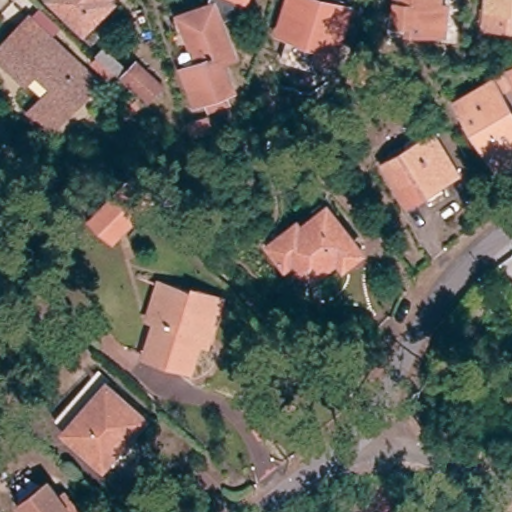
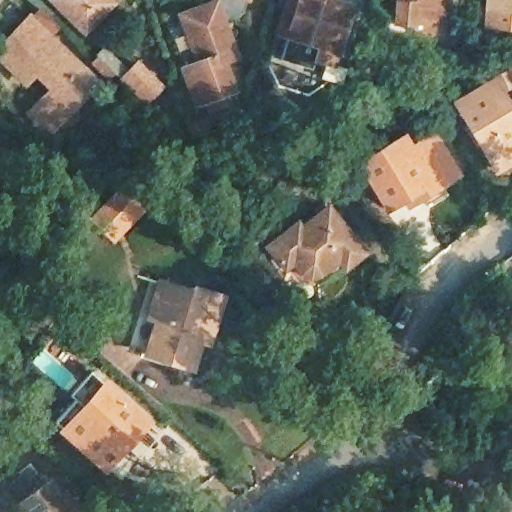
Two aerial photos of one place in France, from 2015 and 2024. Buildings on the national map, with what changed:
unchanged [(113,4),(84,32),(52,0),(110,0),(113,4)]
unchanged [(227,105),(210,112),(207,102),(196,106),(183,71),(199,65),(182,18),(205,9),(210,0),(245,0),(228,41),(235,61),(223,66),(233,93),(224,96),(227,105)]
unchanged [(290,0),(322,0),(350,8),(333,64),(319,59),(322,47),(279,34),(290,0)]
unchanged [(439,25),(404,21),(406,0),(441,0),(439,25)]
unchanged [(476,20),(478,0),(512,0),(512,11),(496,9),(495,22),(476,20)]
unchanged [(47,32),(96,80),(48,129),(31,111),(60,81),(26,48),(11,63),(0,52),(0,47),(24,22),(41,38),(47,32)]
unchanged [(104,53),(127,76),(136,66),(161,90),(145,106),(97,59),(104,53)]
unchanged [(376,73),(361,89),(349,77),(365,62),(376,73)]
unchanged [(512,78),(512,90),(510,87),(501,91),(497,81),(506,77),(507,80),(512,78)]
unchanged [(506,128),(512,125),(512,143),(497,152),(505,165),(492,172),(451,104),(481,86),(506,128)]
unchanged [(181,118),(199,112),(206,134),(188,139),(181,118)]
unchanged [(407,202),(385,165),(433,138),(454,175),(407,202)]
unchanged [(130,176),(154,200),(127,228),(114,243),(89,221),(102,207),(103,206),(130,176)]
unchanged [(327,278),(322,280),(317,281),(310,280),(306,277),(302,275),(297,268),(293,264),(290,267),(275,248),(301,227),(306,232),(331,211),(366,253),(350,266),(346,261),(342,265),(327,278)]
unchanged [(157,321),(149,318),(160,284),(194,294),(195,290),(222,299),(211,336),(203,333),(192,369),(146,355),(157,321)]
unchanged [(122,462),(114,455),(101,469),(60,432),(102,385),(151,430),(122,462)]
unchanged [(64,503),(68,499),(78,512),(27,512),(55,491),(64,503)]
unchanged [(387,505),(380,512),(354,512),(376,492),(387,505)]

